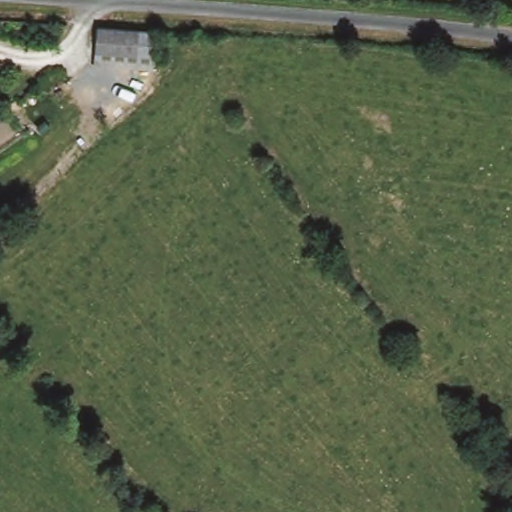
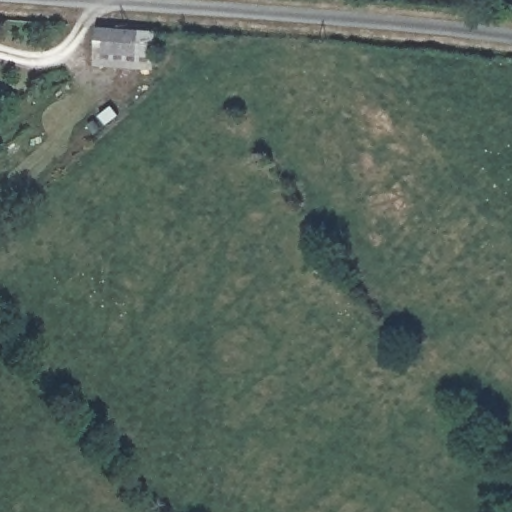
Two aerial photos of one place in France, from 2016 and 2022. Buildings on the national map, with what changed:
unchanged [(149,30),(146,55),(86,50),(89,25),(149,30)]

